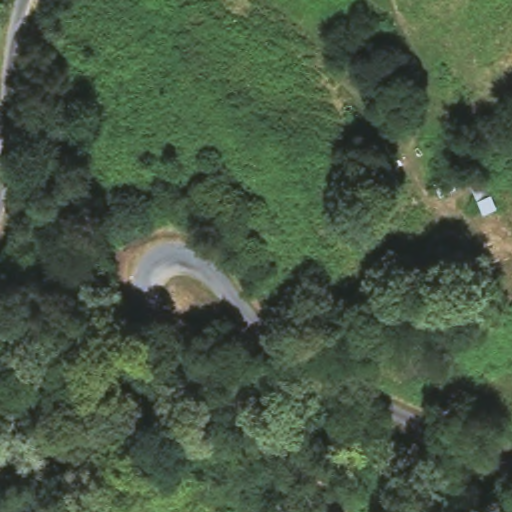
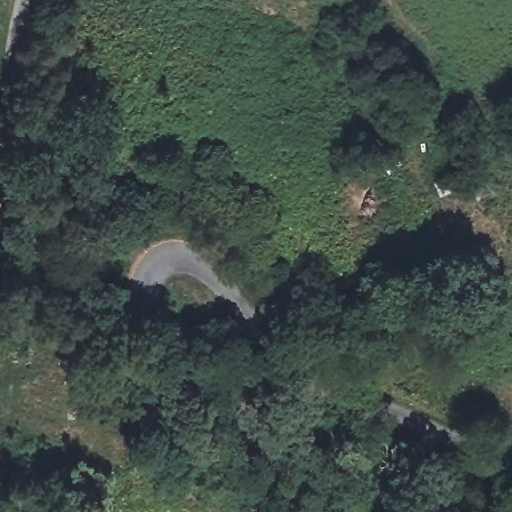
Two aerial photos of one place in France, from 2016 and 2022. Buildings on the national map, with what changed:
unchanged [(473,162),(497,208),(482,213),(467,182),(440,195),(434,180),(473,162)]

